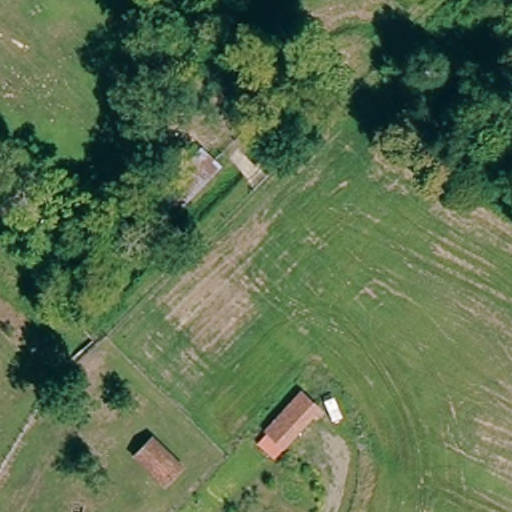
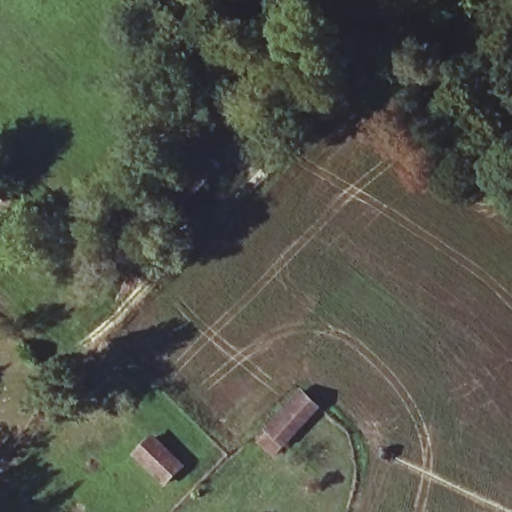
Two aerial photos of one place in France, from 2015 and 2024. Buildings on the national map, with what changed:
unchanged [(171,210),(157,222),(148,213),(162,200),(171,210)]
unchanged [(275,435),(308,398),(319,408),(285,445),(275,435)]
unchanged [(175,466),(159,483),(134,460),(149,443),(175,466)]

